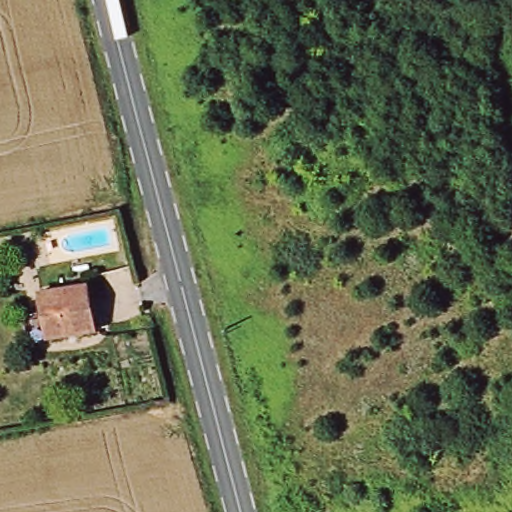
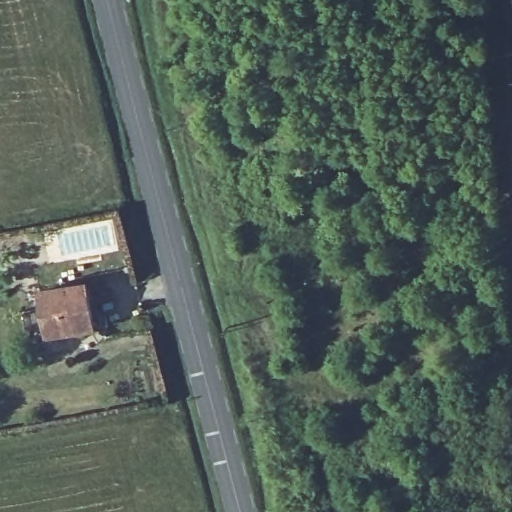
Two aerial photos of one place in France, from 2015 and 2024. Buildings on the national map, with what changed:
unchanged [(53,341),(42,297),(86,284),(98,328),(53,341)]

